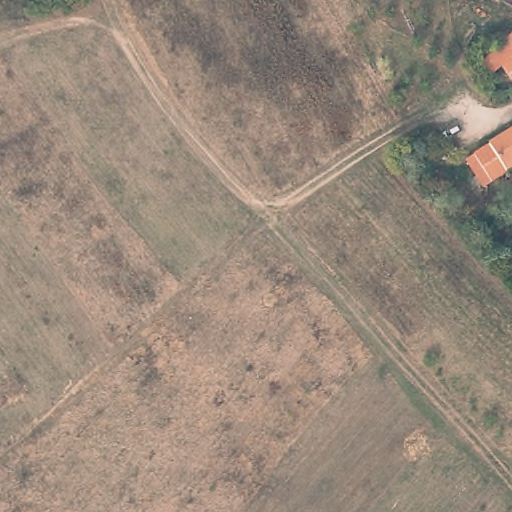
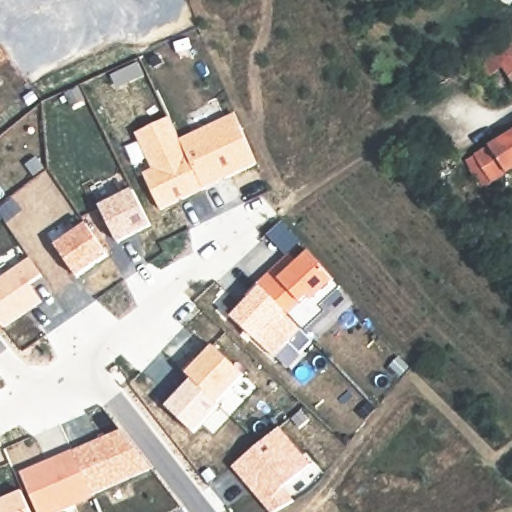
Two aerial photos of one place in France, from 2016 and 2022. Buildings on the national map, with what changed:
unchanged [(503,73),(498,68),(487,79),(475,66),(512,30),(512,82),(503,73)]
new [(234,113),(257,164),(205,187),(175,200),(177,202),(161,210),(142,172),(152,168),(136,132),(170,116),(180,138),(234,113)]
unchanged [(486,187),(466,159),(512,126),(512,168),(486,187)]
new [(131,189),(152,226),(120,243),(100,205),(131,189)]
new [(85,223),(107,255),(79,277),(55,245),(85,223)]
new [(310,250),(336,278),(341,285),(321,305),(325,312),(305,332),(258,281),(289,252),(297,261),(310,250)]
new [(30,284),(42,300),(3,327),(0,323),(0,277),(29,257),(42,275),(30,284)]
new [(212,345),(245,374),(219,403),(194,432),(167,405),(187,373),(212,345)]
new [(283,488),(296,502),(271,512),(232,467),(278,427),(310,465),(283,488)]
new [(152,469),(92,494),(93,496),(55,512),(37,512),(21,472),(120,428),(152,469)]
new [(32,512),(0,512),(0,499),(21,490),(32,512)]

